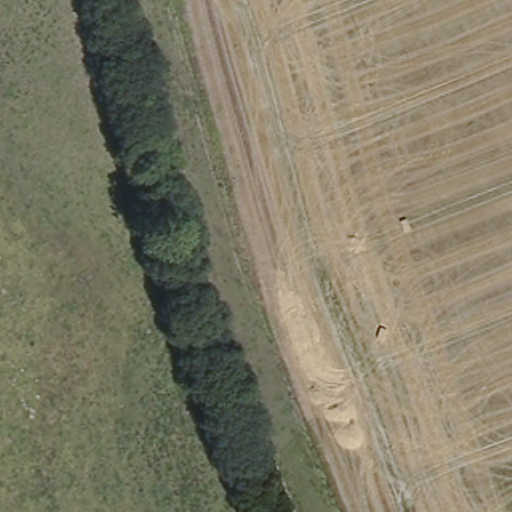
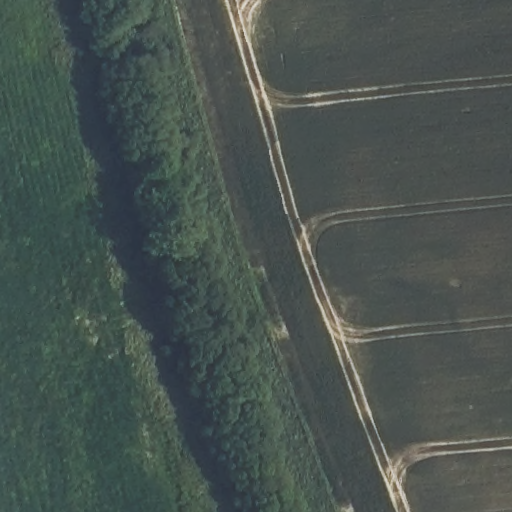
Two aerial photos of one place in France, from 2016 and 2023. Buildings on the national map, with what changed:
[]

